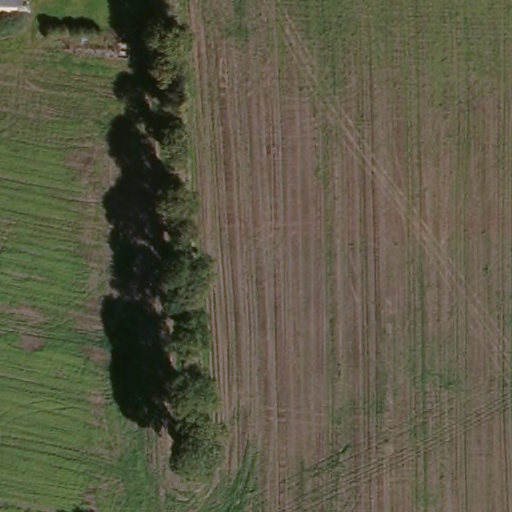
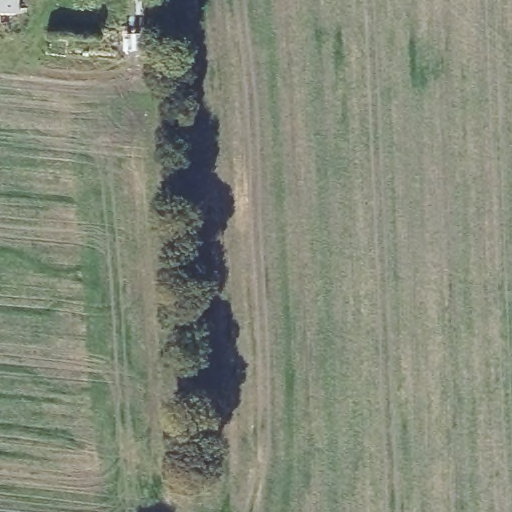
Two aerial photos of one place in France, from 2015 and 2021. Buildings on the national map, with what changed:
unchanged [(19,12),(0,12),(0,0),(20,0),(19,12)]

